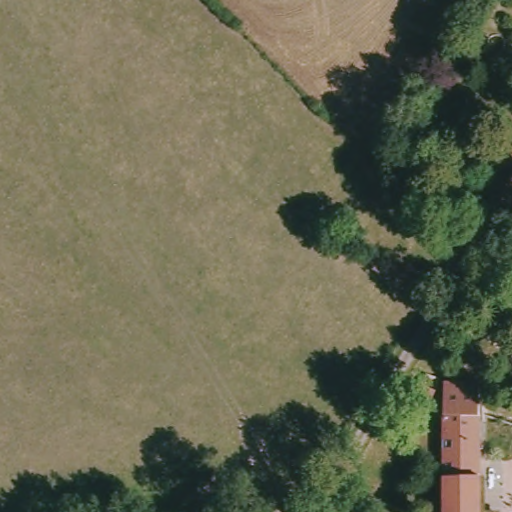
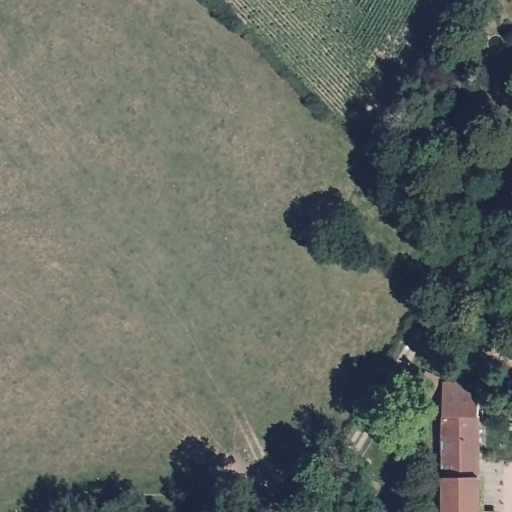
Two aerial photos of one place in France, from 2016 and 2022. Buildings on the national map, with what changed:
unchanged [(419,370),(435,377),(421,409),(406,402),(419,370)]
unchanged [(438,413),(438,380),(474,380),(476,412),(438,413)]
unchanged [(477,477),(438,477),(438,413),(476,412),(477,477)]
unchanged [(477,477),(478,512),(438,512),(438,477),(477,477)]

